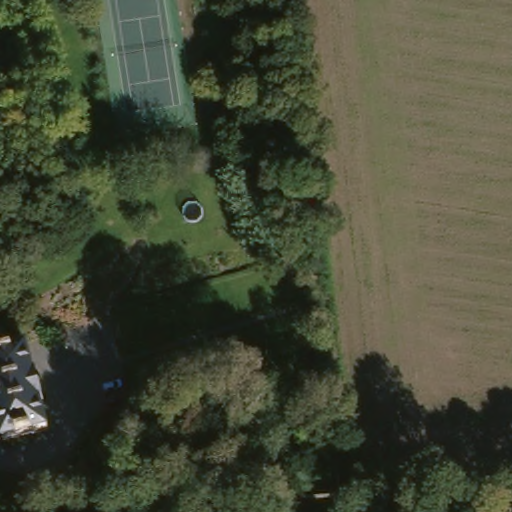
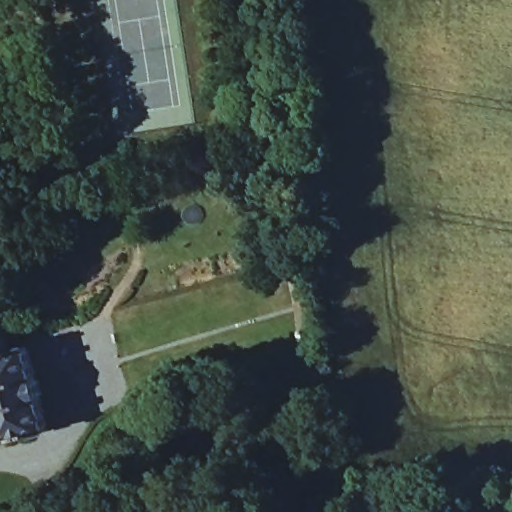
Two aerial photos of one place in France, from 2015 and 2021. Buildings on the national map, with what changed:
unchanged [(17,449),(0,387),(0,355),(0,352),(0,337),(17,334),(21,351),(22,351),(40,347),(47,380),(53,381),(59,405),(54,406),(63,436),(17,449)]
unchanged [(28,507),(30,507),(31,507),(33,508),(34,509),(36,510),(37,511),(38,512),(15,512),(16,511),(17,510),(19,509),(20,508),(22,507),(23,507),(27,507),(28,507)]

